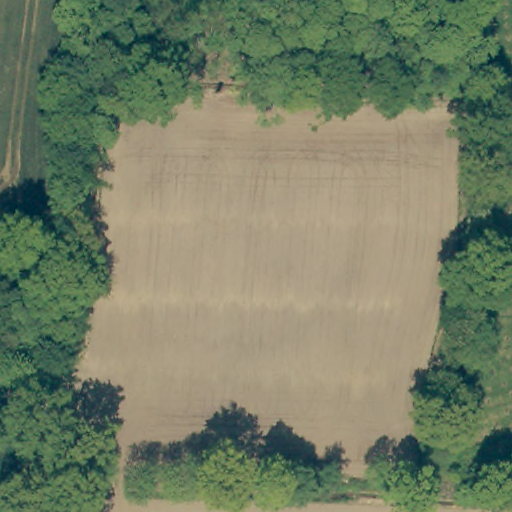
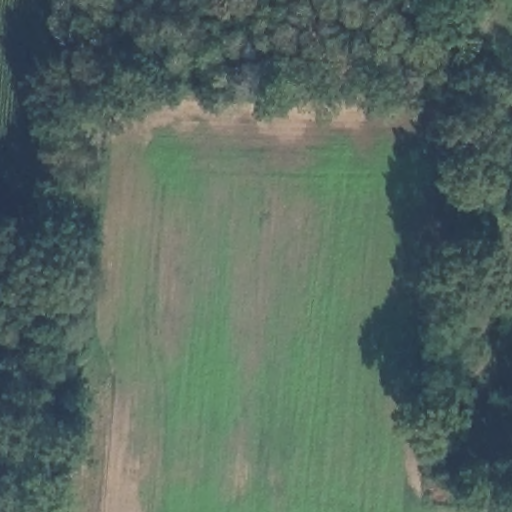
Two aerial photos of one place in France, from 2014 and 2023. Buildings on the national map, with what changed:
[]

